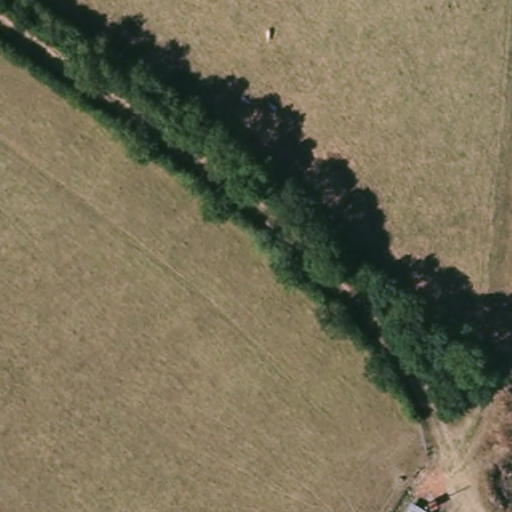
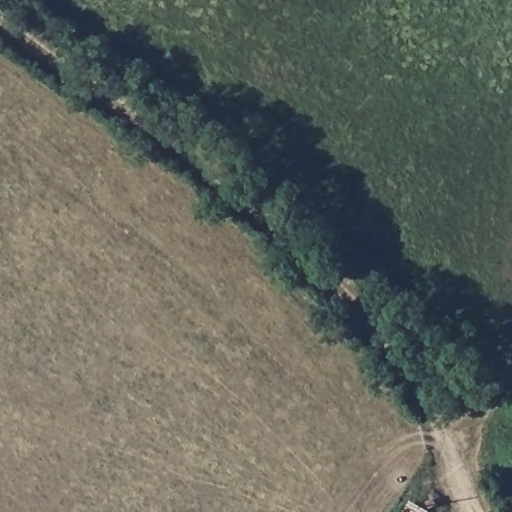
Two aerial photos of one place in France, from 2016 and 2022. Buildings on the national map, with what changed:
unchanged [(421,512),(412,512),(416,507),(421,512)]

